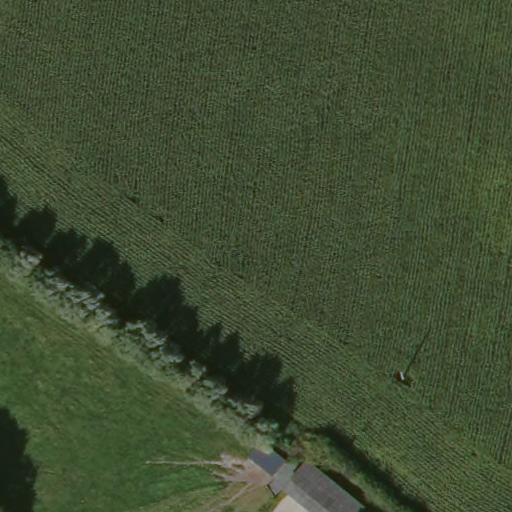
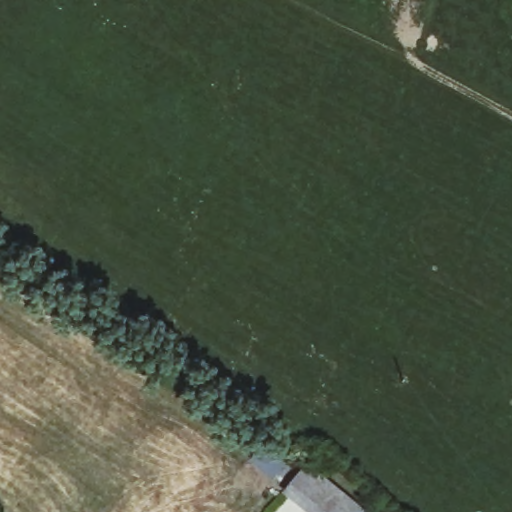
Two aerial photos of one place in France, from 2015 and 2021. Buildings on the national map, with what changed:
unchanged [(302,464),(362,511),(361,512),(305,512),(278,492),(298,469),(302,464)]

